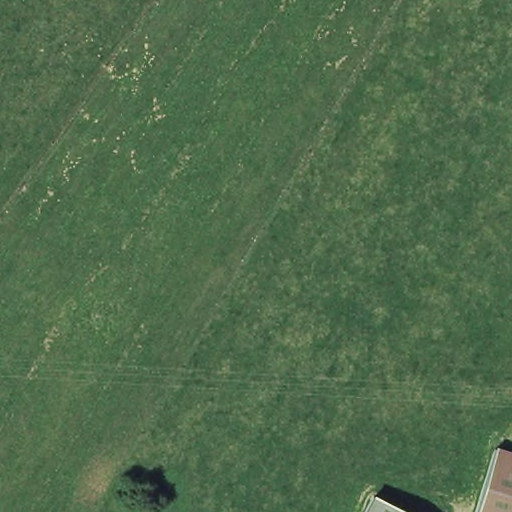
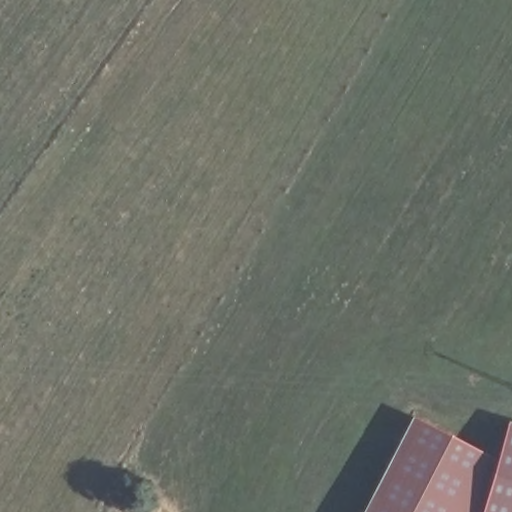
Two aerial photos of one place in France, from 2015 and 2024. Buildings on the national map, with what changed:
new [(481,512),(364,512),(413,418),(493,460),(481,512)]
unchanged [(512,423),(512,512),(482,512),(509,422),(512,423)]

